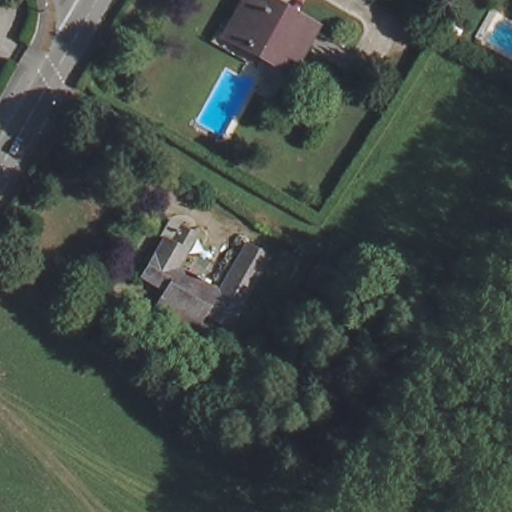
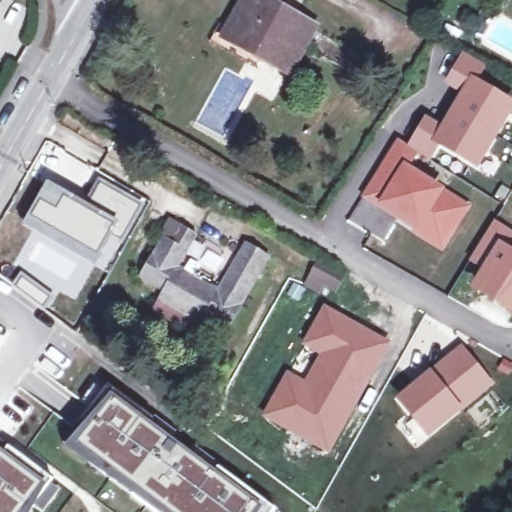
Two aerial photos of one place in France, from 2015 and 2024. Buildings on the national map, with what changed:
unchanged [(247,0),(260,0),(310,28),(285,69),(253,51),(245,67),(212,49),(222,30),(228,33),(247,0)]
new [(440,123),(458,93),(442,83),(461,51),(486,65),(478,79),(512,99),(512,106),(475,170),(438,147),(428,162),(418,156),(412,167),(472,206),(440,254),(396,223),(360,198),(396,138),(405,144),(424,114),(440,123)]
new [(99,176),(143,200),(124,233),(120,231),(115,238),(110,235),(117,220),(85,201),(99,176)]
new [(46,180),(85,201),(117,220),(110,235),(97,257),(35,223),(34,226),(33,225),(32,228),(22,224),(46,180)]
new [(360,198),(396,223),(383,243),(347,221),(360,198)]
new [(478,269),(467,261),(494,219),(512,230),(512,316),(465,289),(478,269)]
unchanged [(140,278),(163,239),(160,237),(168,221),(196,237),(178,268),(217,291),(244,244),(268,258),(228,330),(203,316),(193,334),(153,311),(164,292),(140,278)]
unchanged [(345,276),(337,291),(325,285),(320,294),(305,285),(318,261),(345,276)]
new [(19,272),(50,295),(40,308),(10,285),(19,272)]
new [(285,370),(303,379),(317,355),(300,345),(323,304),(392,342),(329,454),(301,441),(259,417),(285,370)]
new [(461,343),(495,384),(427,438),(393,397),(461,343)]
new [(82,399),(95,384),(103,391),(107,385),(155,419),(155,416),(177,433),(174,439),(192,453),(195,448),(218,467),(274,509),(271,512),(154,512),(64,448),(97,409),(82,399)]
new [(50,483),(60,490),(42,512),(34,505),(30,512),(0,512),(0,440),(53,480),(50,483)]

